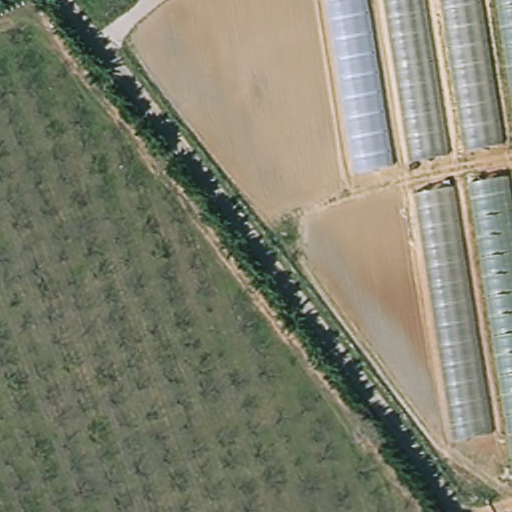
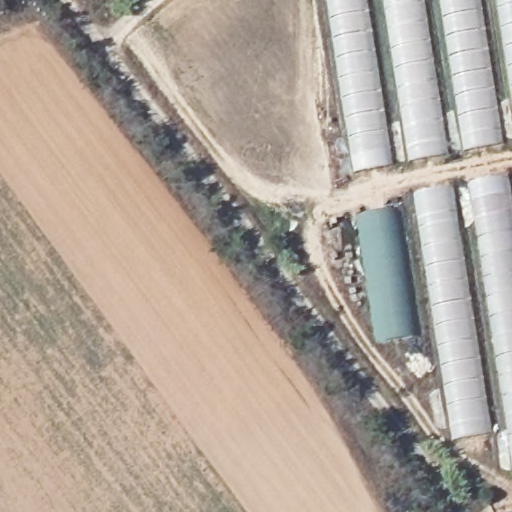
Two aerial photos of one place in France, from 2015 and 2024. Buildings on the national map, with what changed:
unchanged [(507,433),(448,441),(439,367),(408,166),(352,174),(326,0),(512,0),(512,466),(507,433)]
new [(399,207),(419,336),(375,343),(356,214),(399,207)]

